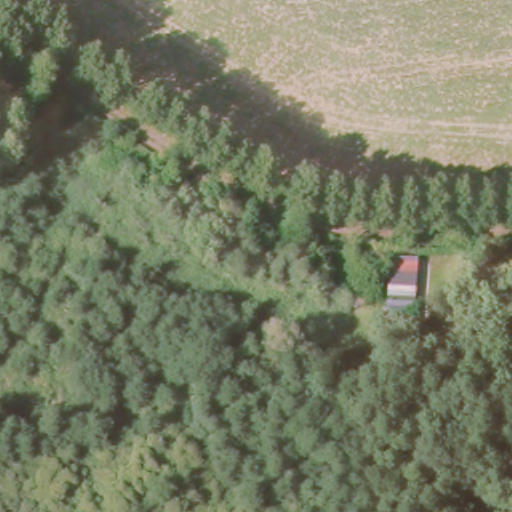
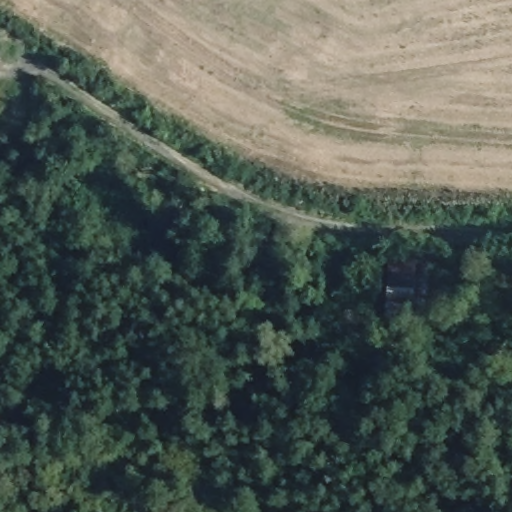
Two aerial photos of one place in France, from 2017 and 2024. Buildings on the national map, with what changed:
unchanged [(388,263),(412,266),(402,328),(379,325),(388,263)]

